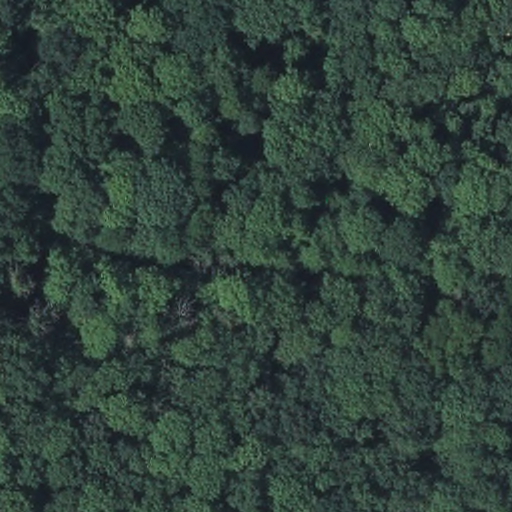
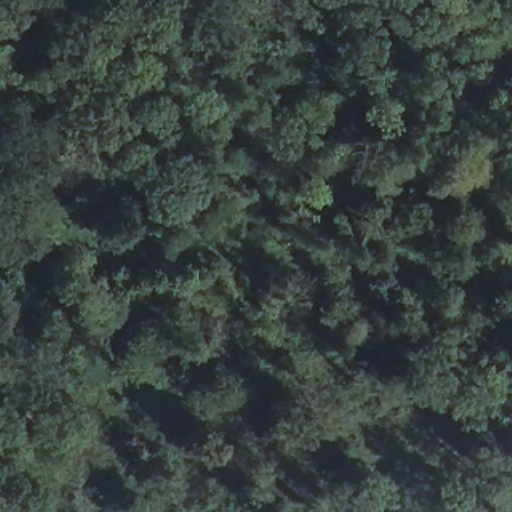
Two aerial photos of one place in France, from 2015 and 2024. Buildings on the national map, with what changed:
[]

